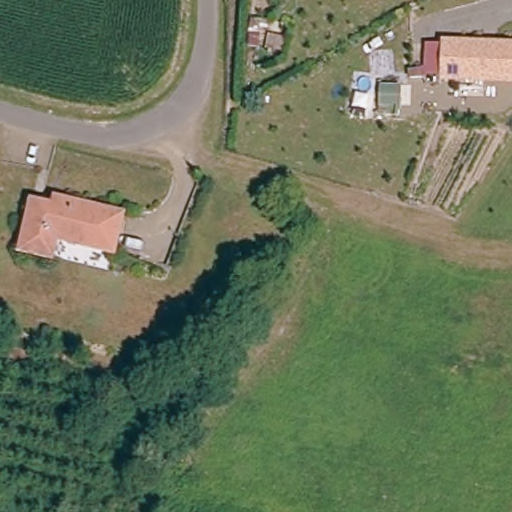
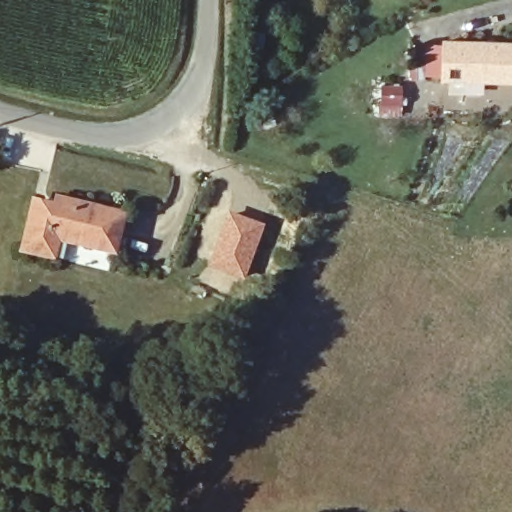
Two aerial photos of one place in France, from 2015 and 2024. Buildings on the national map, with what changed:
unchanged [(447,38),(512,41),(512,78),(446,76),(447,38)]
unchanged [(110,256),(57,243),(53,260),(21,252),(31,210),(52,216),(54,204),(65,206),(119,220),(110,256)]
new [(207,268),(228,212),(265,225),(255,252),(251,251),(249,258),(252,260),(245,281),(207,268)]

